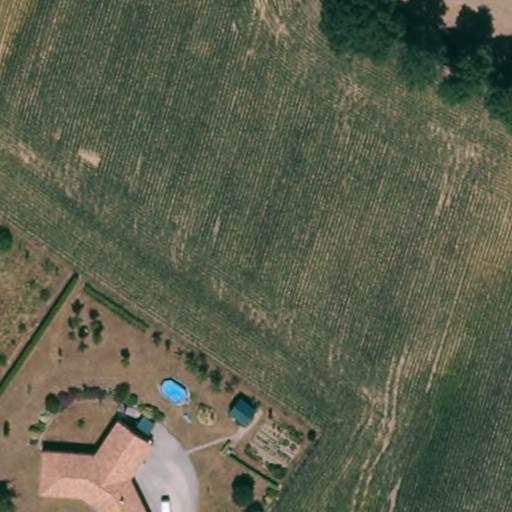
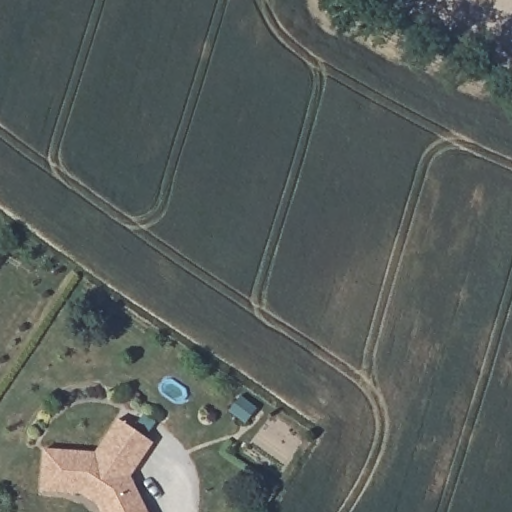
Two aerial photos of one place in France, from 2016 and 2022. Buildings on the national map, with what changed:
unchanged [(109,505),(105,498),(88,487),(82,487),(47,487),(49,445),(101,446),(122,412),(143,424),(158,433),(149,448),(137,468),(160,512),(112,512),(109,505)]

